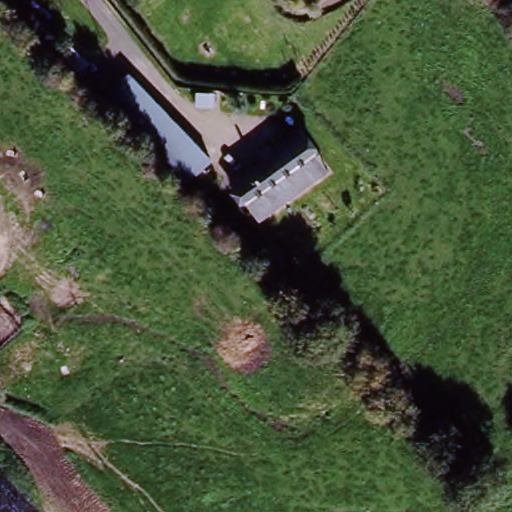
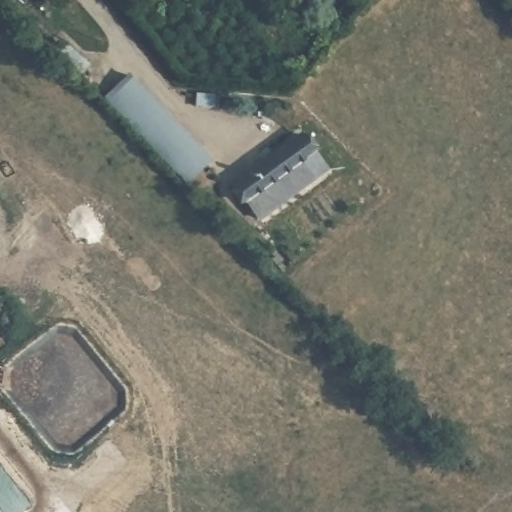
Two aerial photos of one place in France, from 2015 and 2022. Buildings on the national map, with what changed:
unchanged [(115,90),(224,172),(207,194),(97,111),(115,90)]
unchanged [(234,194),(298,145),(313,163),(246,214),(234,194)]

